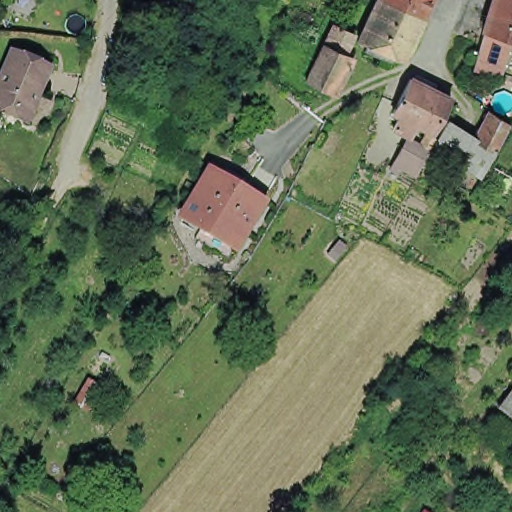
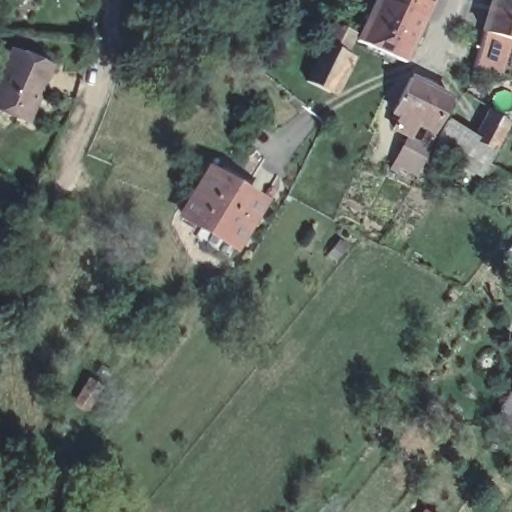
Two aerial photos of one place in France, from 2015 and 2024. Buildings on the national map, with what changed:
unchanged [(380,0),(391,0),(435,0),(427,17),(407,62),(362,40),(380,0)]
unchanged [(477,42),(482,25),(489,0),(512,0),(512,34),(501,31),(496,48),(502,50),(496,70),(471,63),(477,42)]
unchanged [(310,80),(321,56),(328,42),(337,22),(358,32),(349,52),(351,54),(344,67),(333,91),(310,80)]
unchanged [(21,123),(0,114),(0,66),(6,52),(44,69),(21,123)]
unchanged [(395,112),(413,78),(453,98),(435,132),(419,124),(413,135),(395,127),(401,115),(395,112)]
unchanged [(459,159),(436,145),(435,144),(432,149),(422,142),(428,132),(438,138),(449,120),(450,121),(473,135),(476,137),(493,110),(511,122),(496,151),(498,152),(485,175),(459,159)]
unchanged [(404,146),(427,158),(418,174),(396,162),(404,146)]
unchanged [(180,210),(207,165),(260,196),(233,241),(227,252),(194,232),(200,221),(180,210)]
unchanged [(100,385),(86,410),(73,401),(87,377),(100,385)]
unchanged [(512,383),(512,385),(511,385),(512,383)]
unchanged [(512,405),(512,415),(507,411),(512,405)]
unchanged [(424,510),(426,512),(422,512),(424,510)]

